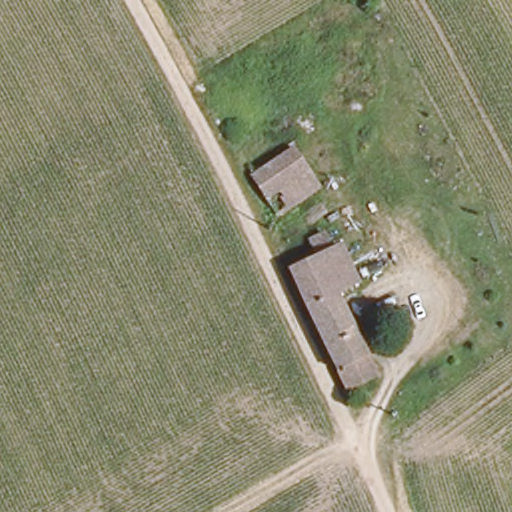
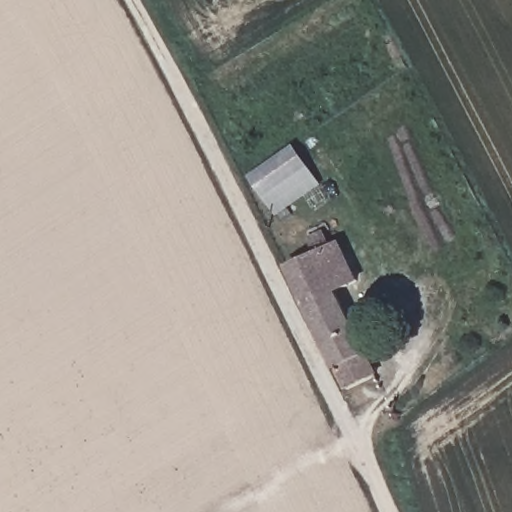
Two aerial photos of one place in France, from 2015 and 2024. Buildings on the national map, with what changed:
unchanged [(316,190),(274,217),(248,177),(289,150),(316,190)]
unchanged [(346,385),(345,381),(337,365),(290,267),(316,252),(310,242),(316,237),(313,233),(320,229),(326,237),(324,238),(333,247),(341,244),(357,275),(339,285),(369,349),(378,369),(346,385)]

